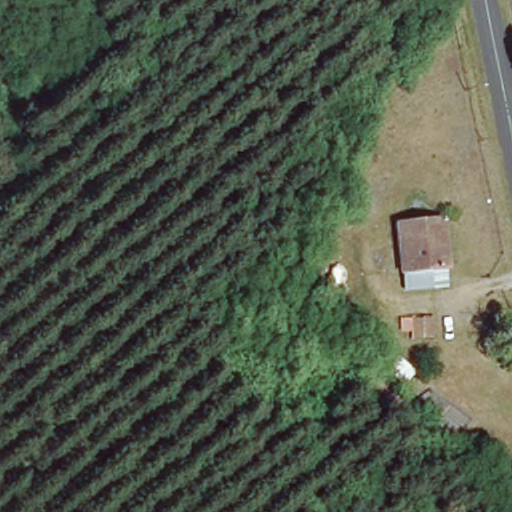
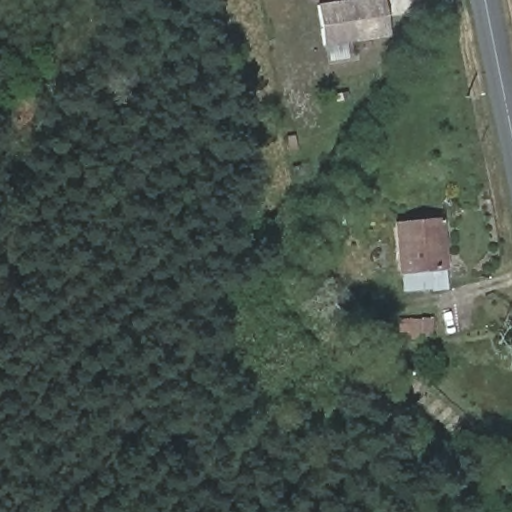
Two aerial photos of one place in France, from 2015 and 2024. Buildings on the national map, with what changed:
new [(322,46),(316,4),(346,0),(384,0),(390,36),(322,46)]
demolished [(358,198),(382,194),(386,228),(363,231),(358,198)]
unchanged [(396,221),(440,217),(443,264),(420,265),(421,284),(402,286),(396,221)]
unchanged [(409,321),(420,319),(423,339),(410,341),(409,321)]

